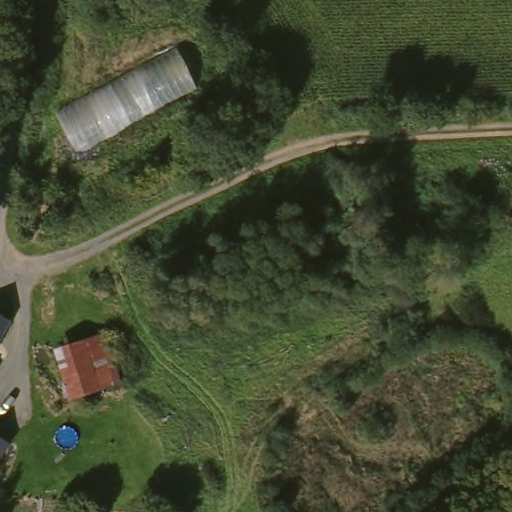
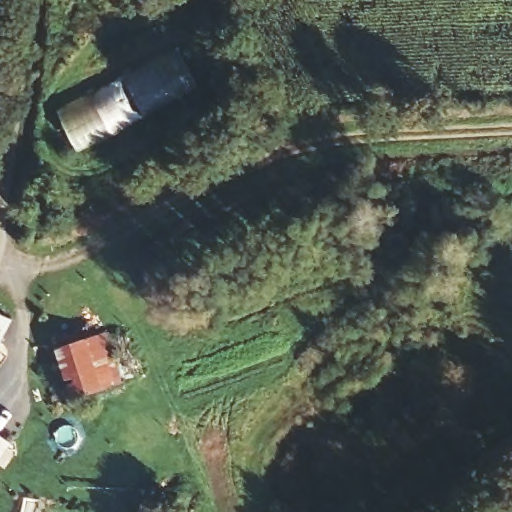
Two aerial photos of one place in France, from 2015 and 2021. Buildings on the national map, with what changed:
unchanged [(78,152),(56,112),(176,46),(198,87),(78,152)]
unchanged [(15,323),(0,352),(0,312),(15,323)]
unchanged [(58,344),(113,328),(129,386),(74,401),(58,344)]
unchanged [(3,369),(0,374),(0,367),(3,369)]
unchanged [(0,464),(0,420),(3,422),(18,434),(21,436),(0,464)]

